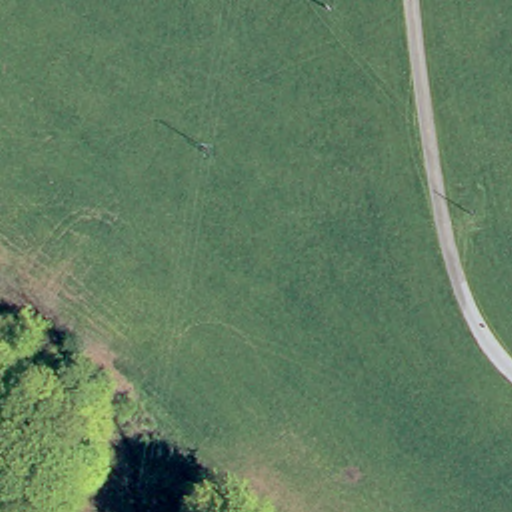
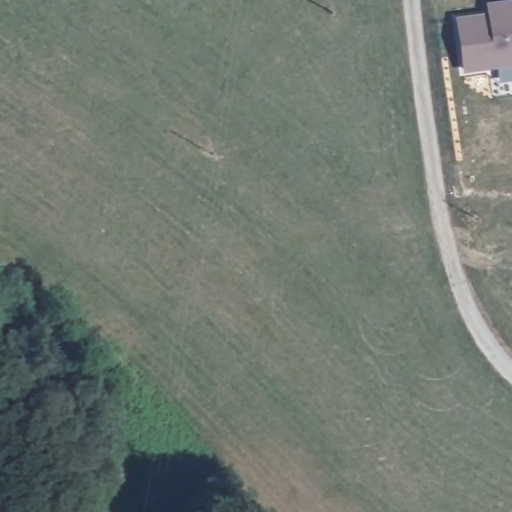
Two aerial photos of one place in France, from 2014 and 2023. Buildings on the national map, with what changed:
new [(456,17),(488,12),(487,1),(499,0),(512,0),(512,66),(463,72),(456,17)]

